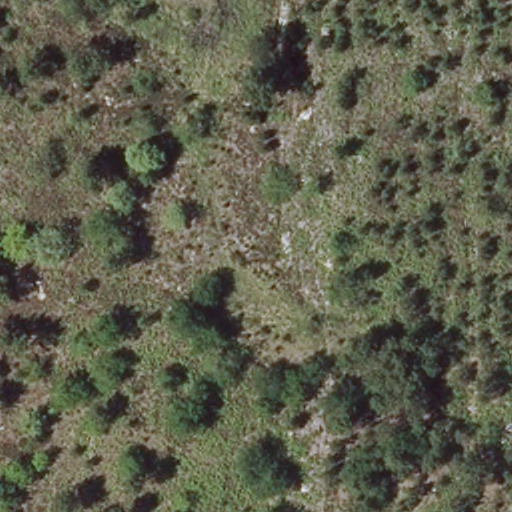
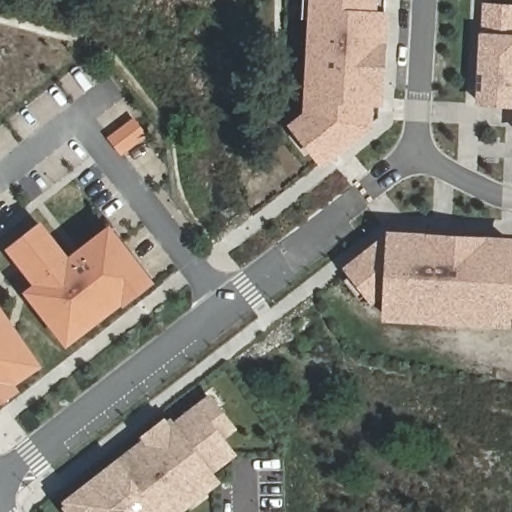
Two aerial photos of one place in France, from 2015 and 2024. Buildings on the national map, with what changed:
new [(296,123),(308,111),(314,15),(303,15),(304,0),(386,0),(385,14),(383,48),(381,84),(380,101),(379,116),(369,124),(344,144),(324,160),(317,151),(296,123)]
new [(481,102),(485,30),(486,4),(512,5),(512,103),(481,102)]
new [(143,136),(121,153),(111,140),(133,124),(143,136)]
new [(9,250),(39,227),(66,262),(108,231),(149,284),(122,305),(117,298),(104,307),(108,312),(65,344),(35,304),(26,293),(36,285),(9,250)]
new [(488,323),(455,321),(419,318),(387,316),(388,290),(384,290),(373,299),(368,293),(359,300),(344,280),(353,273),(349,268),(391,236),(433,238),(449,239),(512,243),(511,252),(512,252),(512,312),(489,311),(508,312),(507,324),(488,323)]
new [(0,313),(1,315),(14,333),(36,366),(8,385),(14,394),(0,403),(0,313)]
new [(70,502),(172,424),(175,428),(212,400),(234,429),(221,439),(233,455),(209,473),(216,483),(178,512),(77,512),(70,502)]

